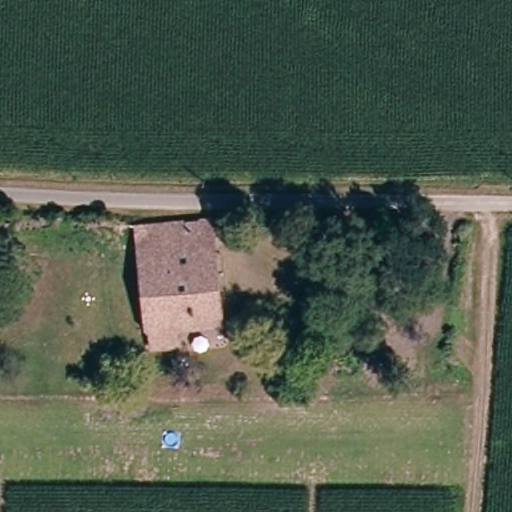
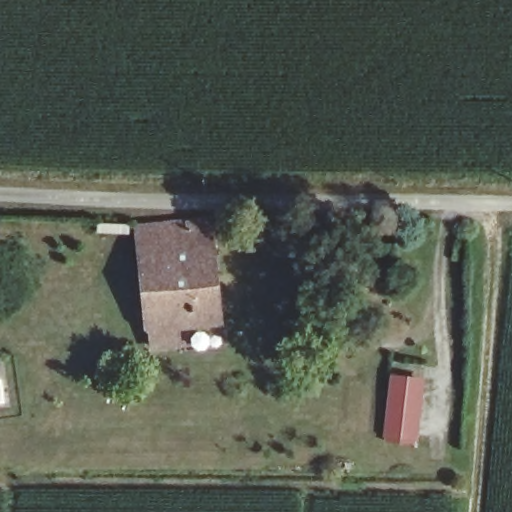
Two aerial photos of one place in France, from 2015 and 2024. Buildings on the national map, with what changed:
unchanged [(225,324),(182,329),(182,348),(149,351),(138,226),(212,223),(217,223),(225,324)]
new [(389,374),(425,378),(417,446),(382,442),(389,374)]

